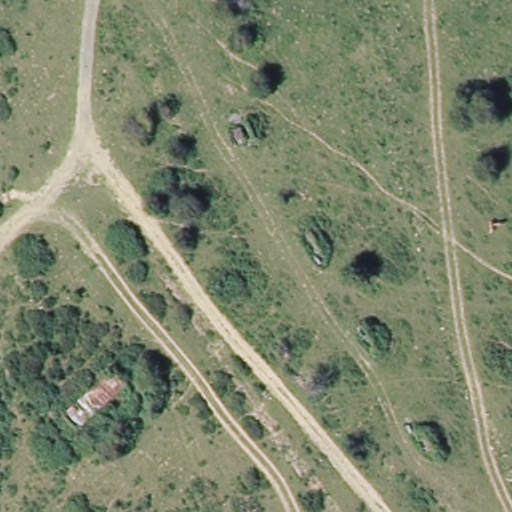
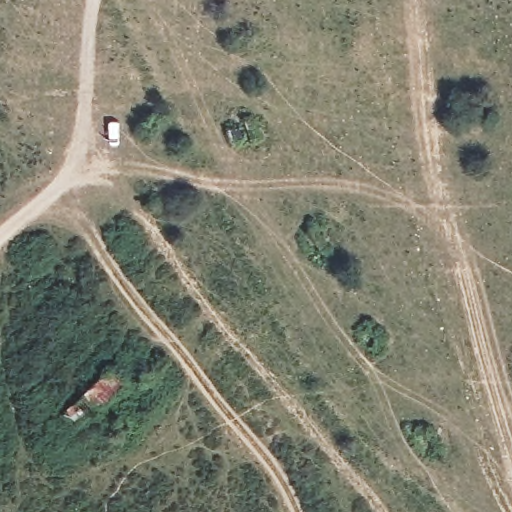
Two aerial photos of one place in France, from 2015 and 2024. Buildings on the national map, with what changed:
unchanged [(114,371),(125,385),(77,428),(65,412),(114,371)]

